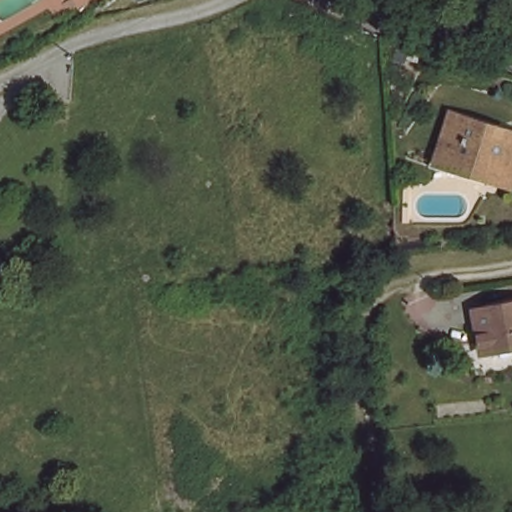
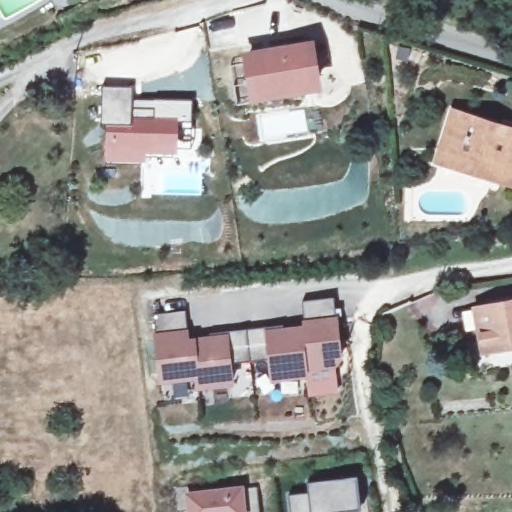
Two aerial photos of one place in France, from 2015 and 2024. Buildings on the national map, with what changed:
new [(314,40),(322,91),(250,101),(241,51),(314,40)]
new [(129,88),(131,119),(153,119),(153,101),(191,101),(191,128),(176,128),(176,157),(141,157),(141,164),(104,164),(106,125),(100,125),(102,87),(129,88)]
unchanged [(454,112),(491,124),(487,135),(493,137),(494,132),(512,138),(512,183),(473,170),(439,160),(443,151),(454,112)]
new [(182,315),(183,331),(187,331),(188,339),(228,336),(228,330),(246,328),(246,326),(301,322),(299,295),(334,294),(339,361),(307,363),(308,372),(268,374),(266,357),(238,359),(239,385),(196,388),(195,383),(156,385),(153,317),(182,315)]
unchanged [(479,324),(476,309),(488,307),(512,302),(512,346),(484,351),(479,324)]
new [(308,493),(307,483),(354,477),(359,508),(325,512),(290,512),(288,496),(308,493)]
new [(257,512),(187,512),(188,492),(256,492),(257,512)]

